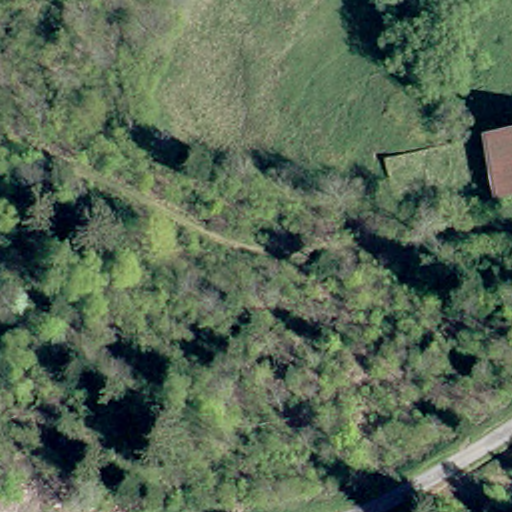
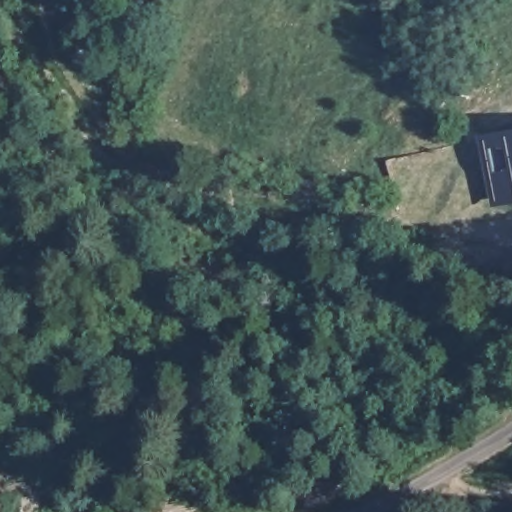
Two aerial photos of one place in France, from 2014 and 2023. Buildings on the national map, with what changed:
unchanged [(512,139),(512,199),(496,202),(486,144),(512,139)]

